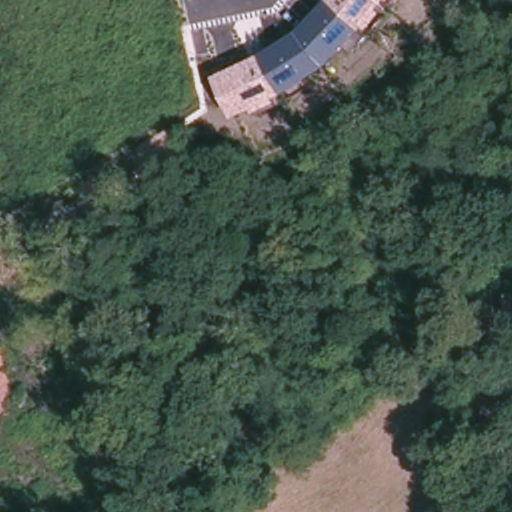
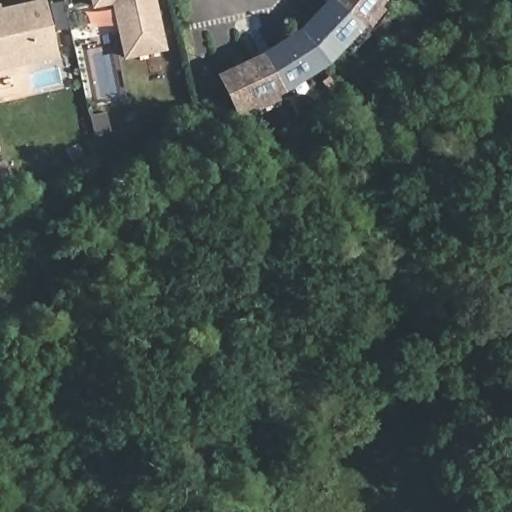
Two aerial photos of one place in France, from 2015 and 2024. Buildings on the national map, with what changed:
new [(123,60),(112,4),(91,9),(89,0),(156,0),(167,51),(123,60)]
unchanged [(388,13),(373,31),(367,27),(362,33),(370,39),(357,52),(349,45),(328,69),(311,80),(313,86),(297,95),(293,89),(277,99),(280,104),(260,113),(257,108),(235,116),(217,74),(262,54),(300,29),(328,0),(388,0),(382,8),(388,13)]
new [(53,49),(0,62),(0,10),(42,1),(53,49)]

